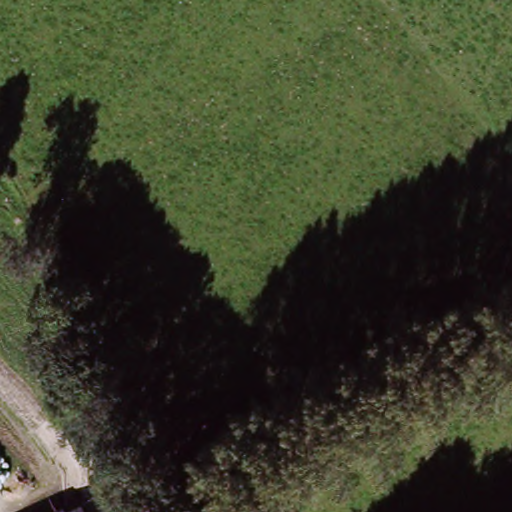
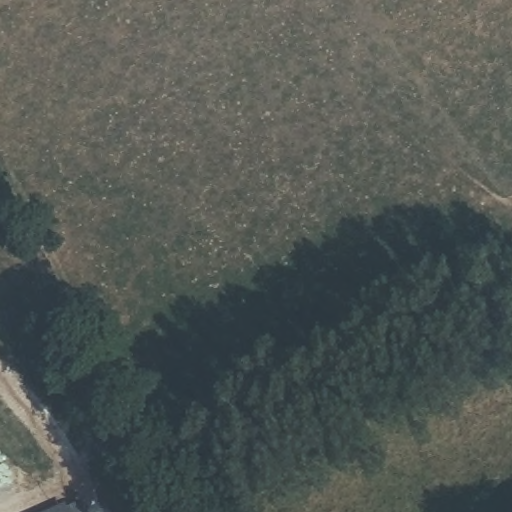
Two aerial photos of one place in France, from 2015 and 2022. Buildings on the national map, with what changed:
unchanged [(80,512),(59,512),(57,508),(73,500),(80,512)]
unchanged [(59,512),(51,512),(57,508),(59,512)]

